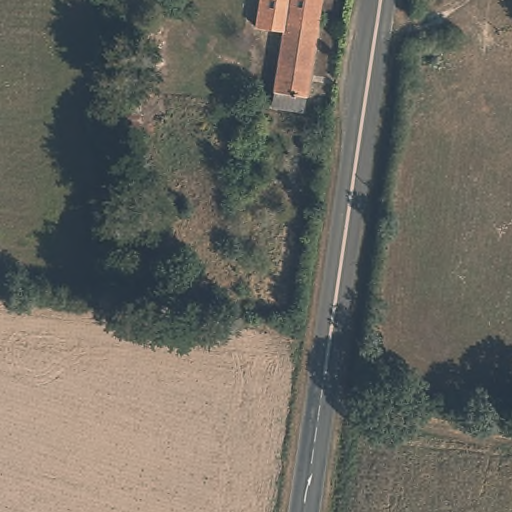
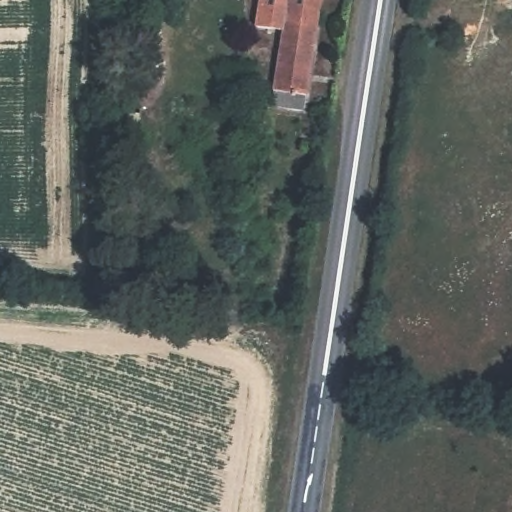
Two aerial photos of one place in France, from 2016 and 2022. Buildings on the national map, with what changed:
unchanged [(260,23),(264,0),(294,0),(290,28),(260,23)]
unchanged [(290,28),(294,0),(323,0),(306,105),(306,109),(277,105),(290,28)]

